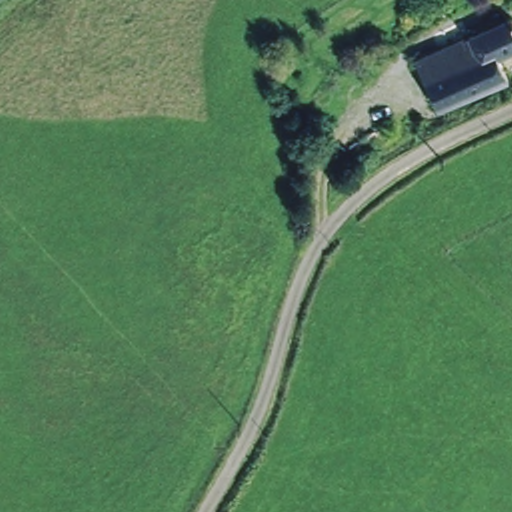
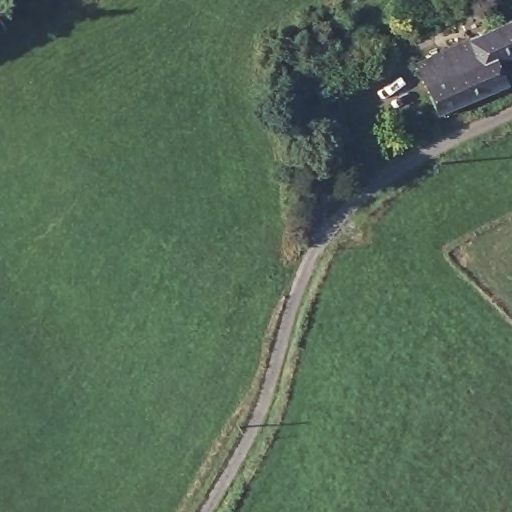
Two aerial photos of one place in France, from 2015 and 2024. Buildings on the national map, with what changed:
unchanged [(510,36),(512,39),(512,48),(490,57),(500,80),(436,109),(416,62),(503,21),(510,36)]

